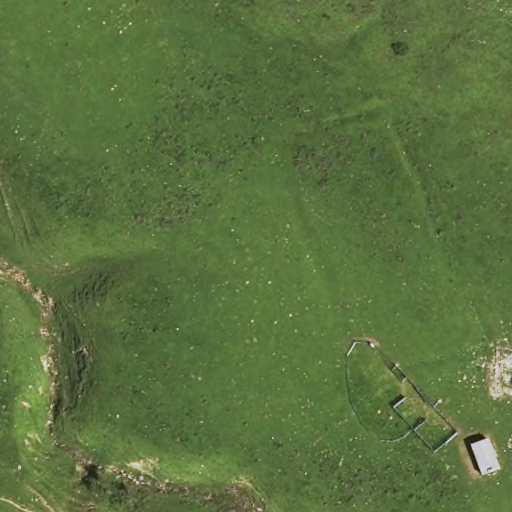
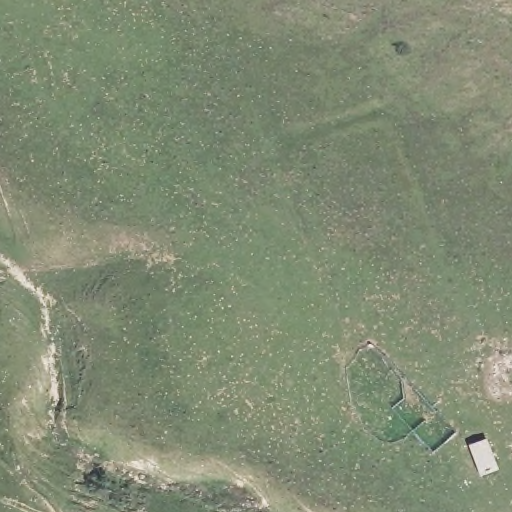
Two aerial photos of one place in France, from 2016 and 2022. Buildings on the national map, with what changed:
unchanged [(495,454),(500,470),(478,477),(468,444),(490,437),(495,454)]

